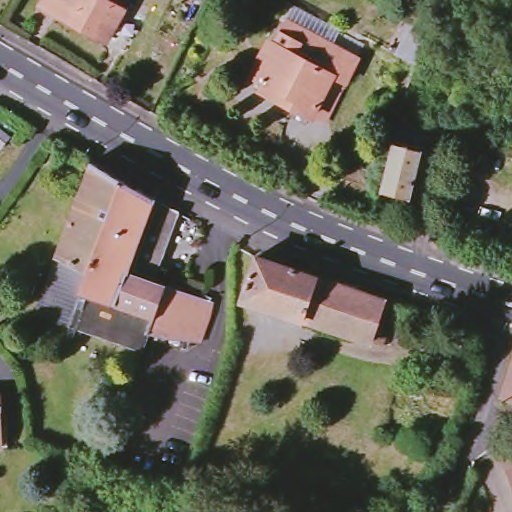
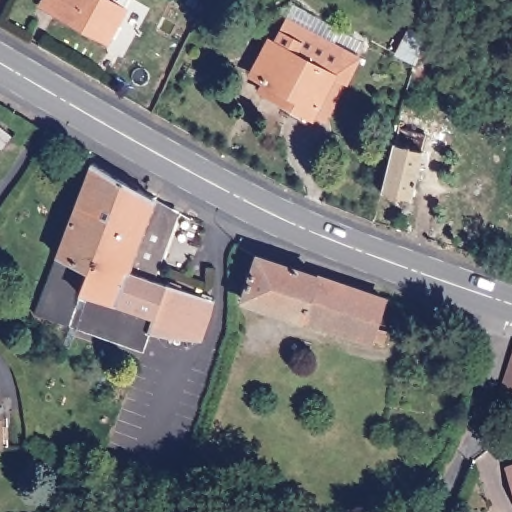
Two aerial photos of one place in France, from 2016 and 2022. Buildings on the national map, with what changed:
unchanged [(108,43),(37,3),(39,0),(127,0),(108,43)]
unchanged [(391,53),(407,18),(430,28),(418,65),(391,53)]
unchanged [(310,115),(285,102),(256,87),(260,80),(251,75),(270,40),(275,43),(289,20),(324,38),(360,57),(346,82),(323,123),(310,115)]
unchanged [(0,148),(0,127),(12,137),(2,149),(0,148)]
unchanged [(387,162),(390,147),(394,148),(397,132),(424,140),(407,203),(379,196),(387,162)]
unchanged [(155,195),(127,268),(152,276),(201,294),(202,290),(212,293),(212,297),(214,298),(201,337),(197,337),(195,348),(175,346),(176,334),(172,334),(167,333),(165,332),(160,331),(154,330),(150,328),(143,347),(95,330),(34,309),(93,158),(155,195)]
unchanged [(177,208),(172,222),(159,258),(152,276),(127,268),(155,195),(177,208)]
unchanged [(257,257),(385,300),(375,330),(384,333),(380,345),(365,340),(315,324),(242,301),(257,257)]
unchanged [(512,401),(500,397),(512,362),(512,401)]
unchanged [(512,471),(512,478),(510,472),(512,471)]

